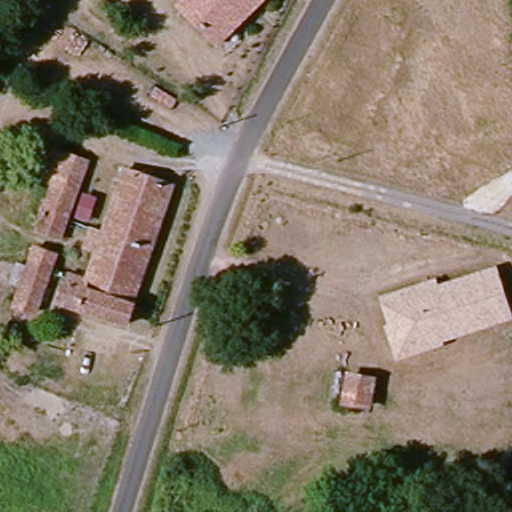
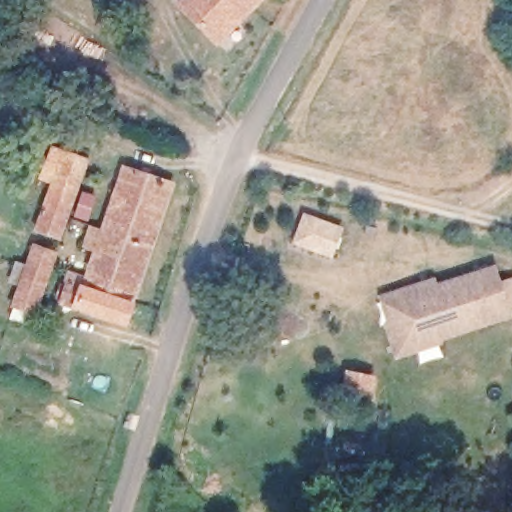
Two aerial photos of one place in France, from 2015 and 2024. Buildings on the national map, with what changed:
unchanged [(179,5),(184,0),(258,0),(215,43),(179,5)]
unchanged [(113,32),(126,47),(110,64),(96,49),(113,32)]
unchanged [(90,164),(62,239),(43,233),(60,185),(45,180),(55,151),(90,164)]
unchanged [(124,317),(63,296),(71,273),(87,279),(100,243),(89,239),(96,219),(107,223),(127,167),(174,183),(124,317)]
new [(344,229),(333,258),(294,243),(305,214),(344,229)]
unchanged [(60,252),(39,313),(20,307),(42,245),(60,252)]
unchanged [(512,315),(396,357),(385,327),(393,324),(383,296),(420,283),(422,289),(492,267),(512,315)]
unchanged [(342,400),(350,368),(378,374),(370,407),(342,400)]

